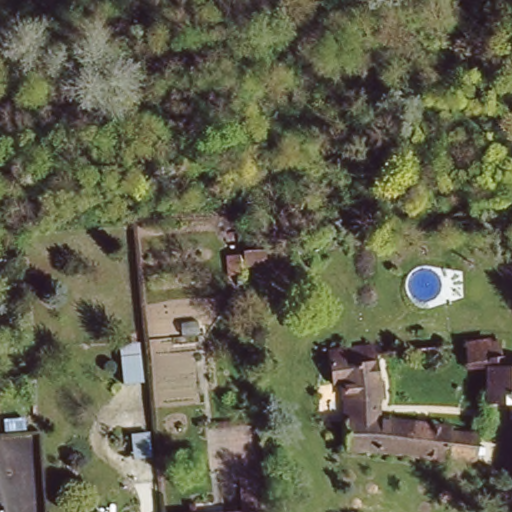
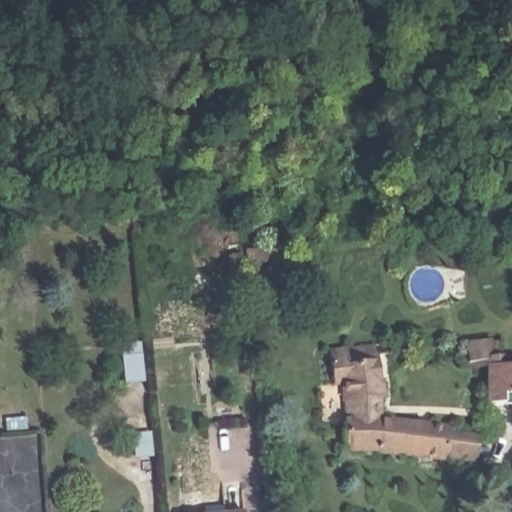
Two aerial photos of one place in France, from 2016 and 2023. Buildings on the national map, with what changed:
unchanged [(466,341),(491,340),(491,343),(501,342),(502,355),(512,355),(512,404),(490,404),(489,356),(467,356),(466,341)]
unchanged [(340,389),(335,356),(381,353),(381,360),(382,372),(350,375),(350,387),(340,389)]
unchanged [(455,464),(353,455),(350,387),(350,375),(382,372),(385,428),(457,434),(457,436),(485,439),(482,462),(481,465),(466,464),(455,462),(455,464)]

